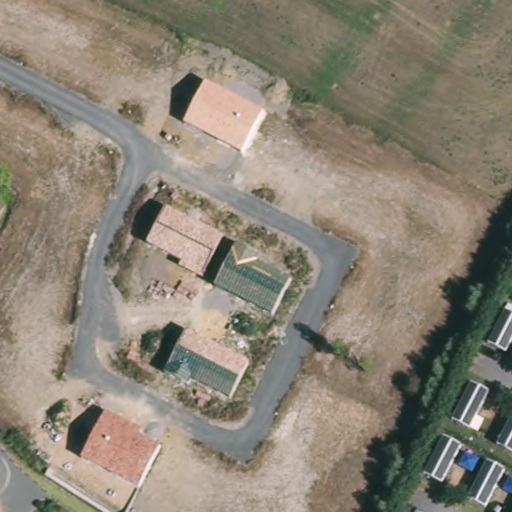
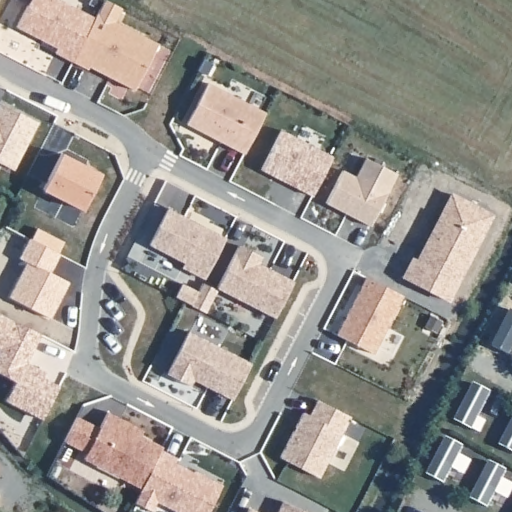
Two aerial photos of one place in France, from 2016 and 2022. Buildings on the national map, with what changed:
new [(55,49),(15,28),(29,0),(60,0),(94,17),(71,62),(53,54),(55,49)]
new [(71,62),(103,0),(104,0),(121,9),(114,22),(144,37),(137,51),(150,58),(134,90),(109,78),(88,67),(91,60),(86,70),(71,62)]
unchanged [(264,111),(244,153),(183,125),(206,81),(264,111)]
new [(37,123),(12,170),(0,164),(0,104),(37,123)]
new [(281,131),(332,157),(312,196),(260,170),(281,131)]
new [(41,191),(59,155),(99,174),(81,211),(41,191)]
new [(341,171),(354,178),(364,159),(395,175),(369,226),(325,203),(341,171)]
unchanged [(223,239),(204,278),(180,266),(183,261),(149,243),(166,209),(223,239)]
new [(26,263),(18,259),(28,239),(58,255),(49,273),(67,283),(49,319),(8,298),(26,263)]
unchanged [(259,258),(256,263),(292,281),(272,318),(214,288),(237,244),(259,258)]
new [(373,354),(335,334),(364,278),(402,296),(373,354)]
unchanged [(250,361),(233,399),(192,380),(189,386),(164,372),(186,328),(250,361)]
new [(302,413),(308,416),(316,400),(349,418),(318,478),(279,458),(302,413)]
unchanged [(140,427),(138,434),(162,445),(141,489),(81,457),(105,412),(140,427)]
new [(63,442),(77,418),(97,428),(84,452),(63,442)]
new [(177,458),(175,463),(192,472),(193,470),(221,484),(206,512),(176,512),(156,502),(151,511),(133,502),(141,489),(160,450),(177,458)]

